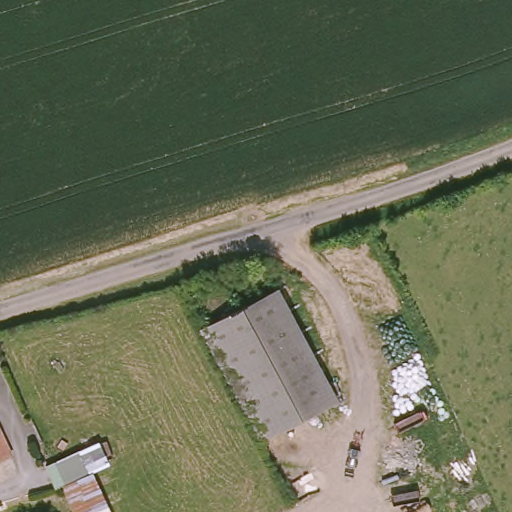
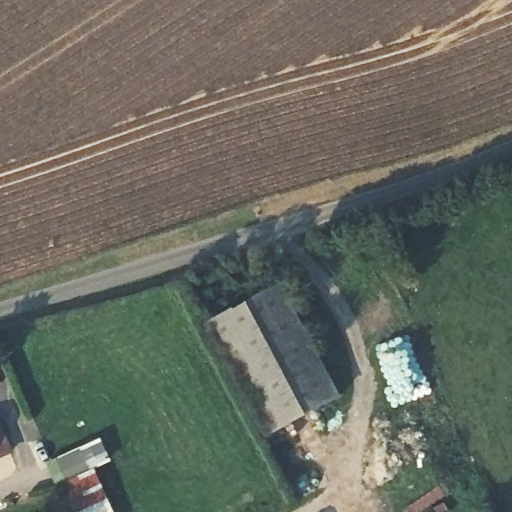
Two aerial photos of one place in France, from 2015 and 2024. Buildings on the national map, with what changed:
unchanged [(265,297),(321,388),(332,405),(327,408),(278,438),(214,330),(265,297)]
unchanged [(11,452),(0,457),(0,433),(11,452)]
unchanged [(93,471),(111,512),(80,512),(68,483),(93,471)]

